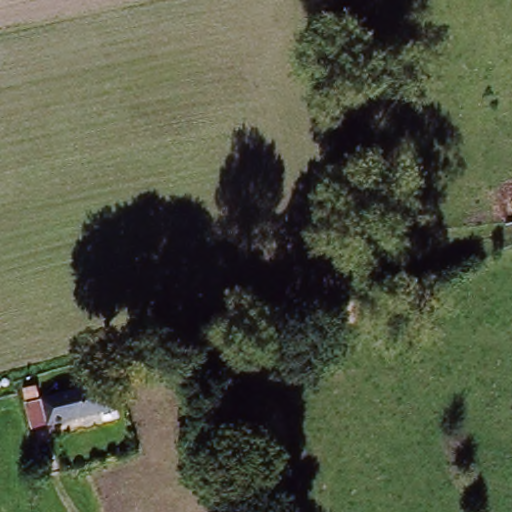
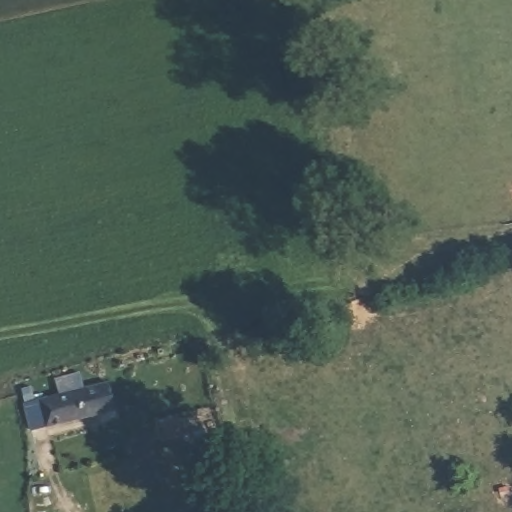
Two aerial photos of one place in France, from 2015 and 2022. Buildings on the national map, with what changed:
unchanged [(115,408),(34,428),(23,401),(108,383),(115,408)]

